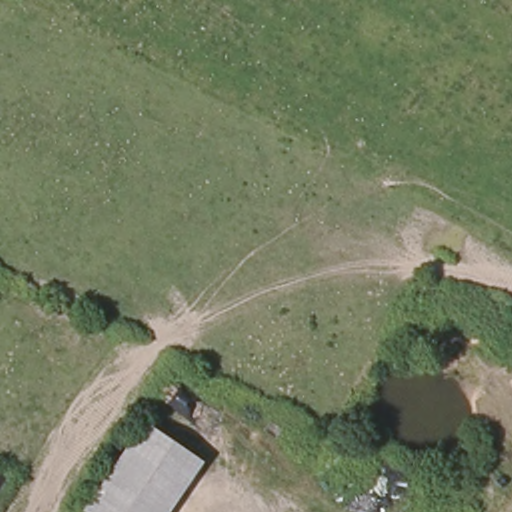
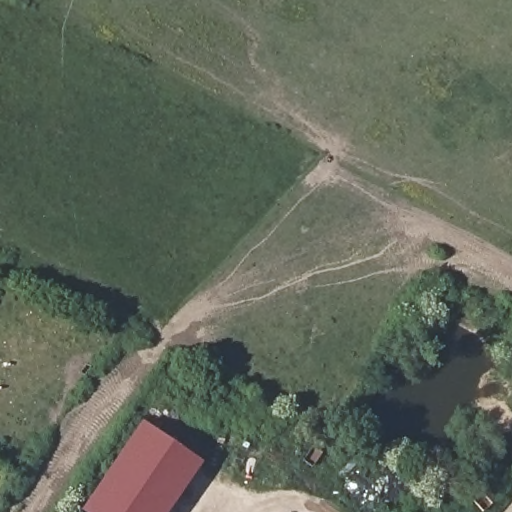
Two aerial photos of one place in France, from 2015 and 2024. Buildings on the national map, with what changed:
unchanged [(198,456),(164,512),(87,512),(85,511),(141,419),(198,456)]

